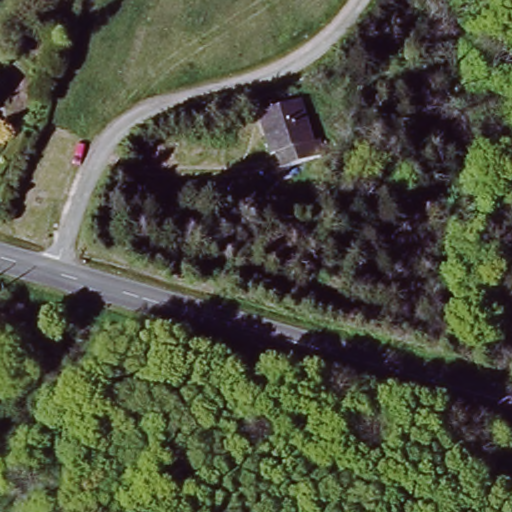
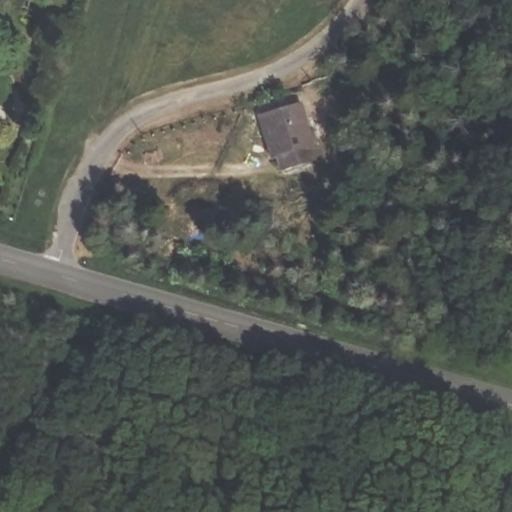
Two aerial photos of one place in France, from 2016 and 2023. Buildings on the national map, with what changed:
unchanged [(7,75),(0,97),(0,73),(7,75)]
unchanged [(306,100),(317,137),(329,134),(334,160),(292,168),(290,161),(275,164),(265,109),(306,100)]

